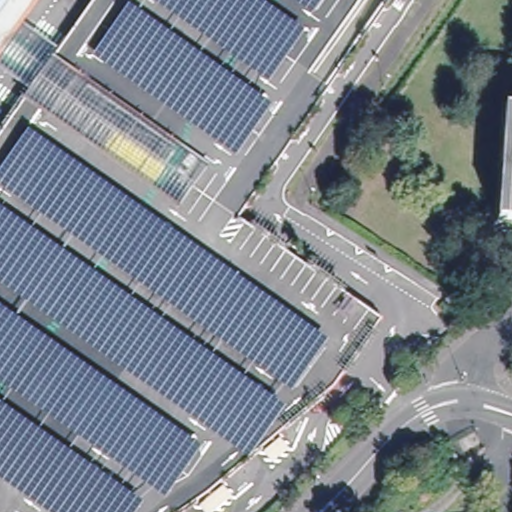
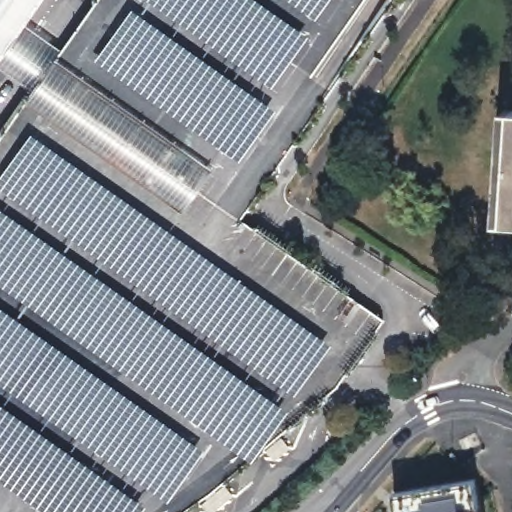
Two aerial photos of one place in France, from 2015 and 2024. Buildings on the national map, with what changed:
unchanged [(10,46),(0,39),(0,0),(42,0),(39,5),(10,46)]
unchanged [(30,93),(46,70),(74,30),(96,0),(391,0),(240,214),(385,314),(336,384),(261,448),(233,472),(204,494),(179,512),(0,512),(0,133),(1,132),(30,93)]
unchanged [(39,5),(74,30),(46,70),(10,46),(39,5)]
unchanged [(507,217),(499,216),(508,106),(512,106),(512,217),(507,217)]
new [(394,492),(400,491),(471,478),(474,480),(480,512),(397,512),(394,492)]

